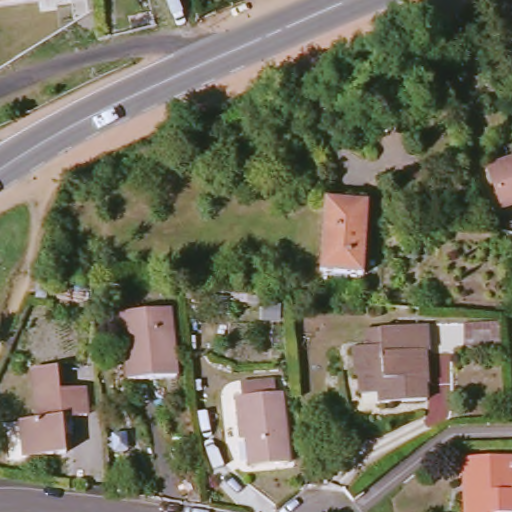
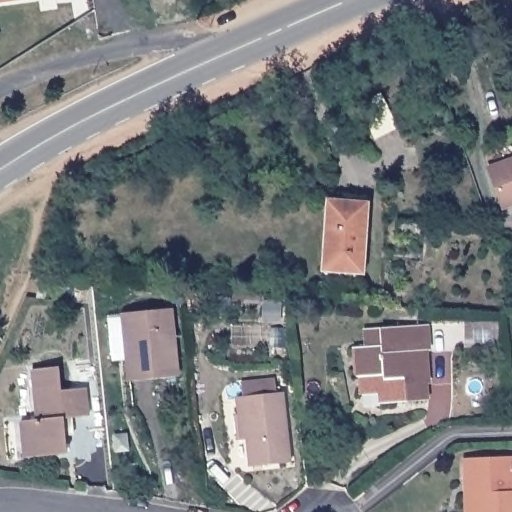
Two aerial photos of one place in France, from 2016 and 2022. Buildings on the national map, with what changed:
unchanged [(0,2),(0,0),(11,0),(0,2)]
unchanged [(512,209),(506,211),(492,170),(512,164),(512,209)]
unchanged [(365,276),(324,273),(327,201),(369,204),(365,276)]
unchanged [(56,286),(54,300),(45,299),(49,285),(56,286)]
unchanged [(170,313),(175,379),(127,383),(124,347),(129,347),(127,316),(170,313)]
unchanged [(425,324),(424,345),(426,380),(424,381),(424,401),(379,405),(377,395),(358,397),(360,376),(352,376),(352,348),(377,346),(377,327),(425,324)]
unchanged [(57,370),(59,392),(83,392),(84,417),(69,419),(68,436),(59,437),(59,456),(20,459),(19,421),(34,420),(33,371),(57,370)]
unchanged [(287,398),(287,469),(252,472),(250,416),(245,416),(243,401),(287,398)]
unchanged [(510,486),(512,486),(512,512),(460,512),(460,493),(467,493),(467,457),(509,457),(510,486)]

